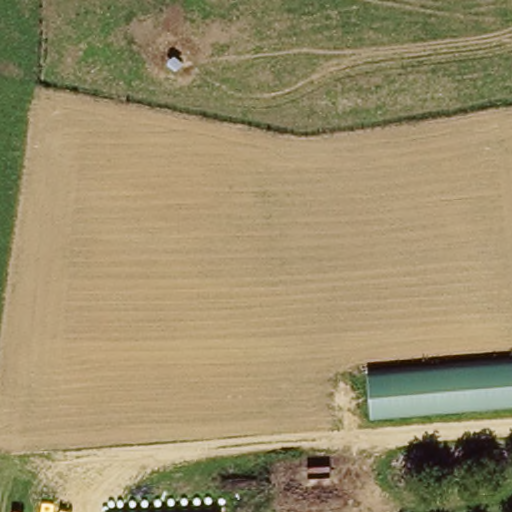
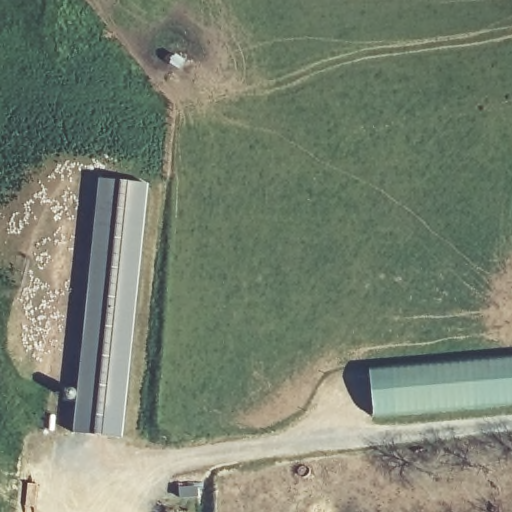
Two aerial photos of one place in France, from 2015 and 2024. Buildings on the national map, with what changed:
new [(122,437),(71,433),(97,180),(148,185),(122,437)]
unchanged [(512,358),(512,402),(372,415),(369,370),(512,358)]

